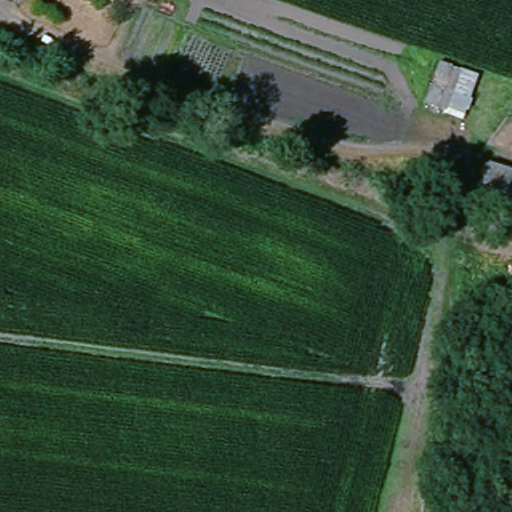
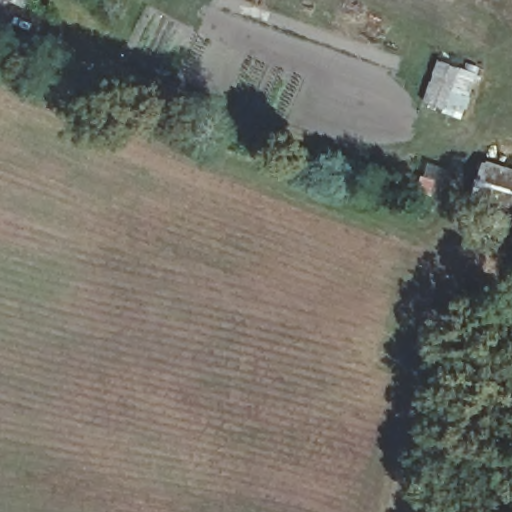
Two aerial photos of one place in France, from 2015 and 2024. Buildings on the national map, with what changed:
unchanged [(10,1),(7,0),(10,0),(10,1)]
unchanged [(475,71),(461,115),(420,101),(436,56),(475,71)]
unchanged [(512,167),(512,214),(472,204),(479,158),(512,167)]

